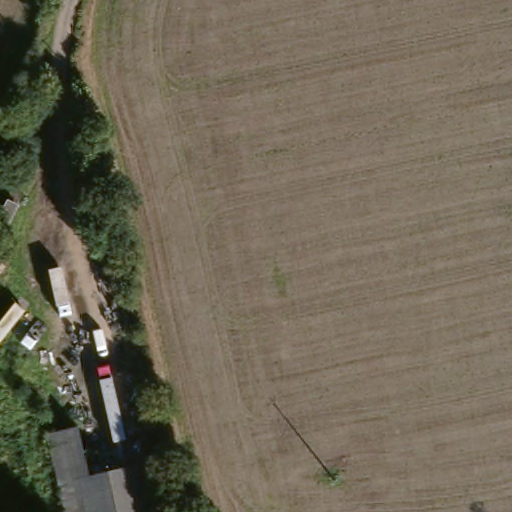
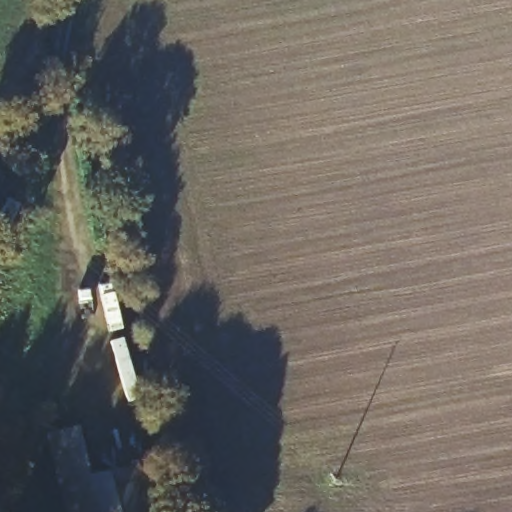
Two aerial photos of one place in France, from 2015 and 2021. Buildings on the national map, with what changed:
unchanged [(74,427),(84,478),(133,470),(143,512),(58,512),(39,435),(74,427)]

